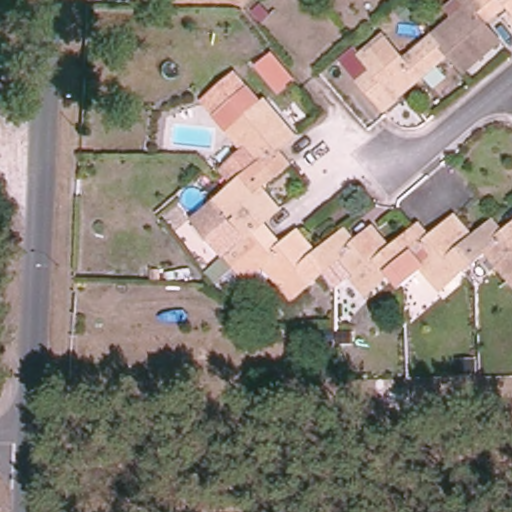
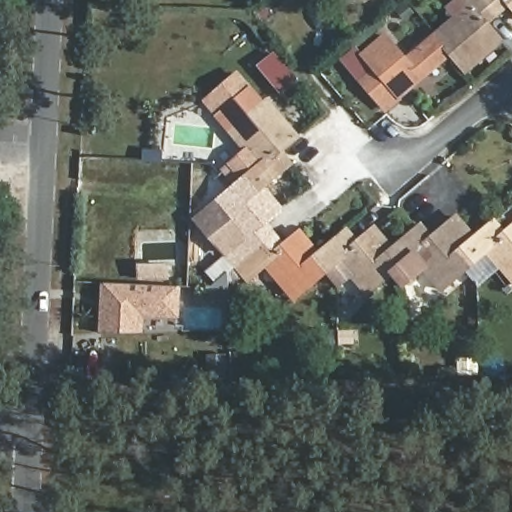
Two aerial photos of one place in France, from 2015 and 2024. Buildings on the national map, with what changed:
unchanged [(365,0),(367,0),(366,1),(365,0)]
unchanged [(502,44),(482,62),(473,52),(460,63),(452,54),(446,46),(437,35),(436,34),(469,6),(464,0),(486,0),(496,11),(482,21),(502,44)]
unchanged [(486,0),(508,0),(496,11),(486,0)]
unchanged [(508,0),(512,0),(512,5),(508,0)]
unchanged [(393,90),(398,96),(400,99),(397,101),(387,109),(378,99),(363,82),(367,79),(377,70),(373,66),(364,55),(387,36),(396,47),(406,59),(415,52),(436,34),(437,35),(446,46),(452,54),(445,61),(410,90),(403,83),(393,90)]
unchanged [(230,132),(215,114),(202,99),(236,71),(248,84),(267,99),(230,132)]
unchanged [(298,135),(281,151),(291,164),(263,187),(282,210),(268,224),(282,243),(297,227),(317,253),(346,227),(356,240),(373,225),(391,248),(420,223),(430,237),(448,219),(467,244),(494,219),(503,233),(512,225),(512,285),(487,254),(440,293),(415,259),(367,295),(341,262),(293,301),(263,269),(247,282),(223,253),(197,220),(211,206),(255,166),(230,132),(267,99),(298,135)]
new [(143,316),(142,335),(98,334),(100,284),(181,287),(180,318),(143,316)]

